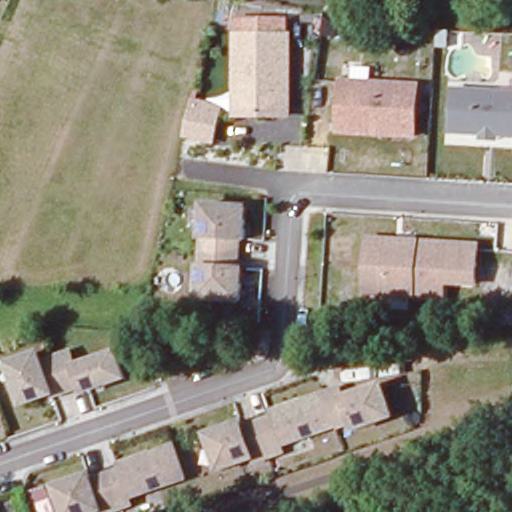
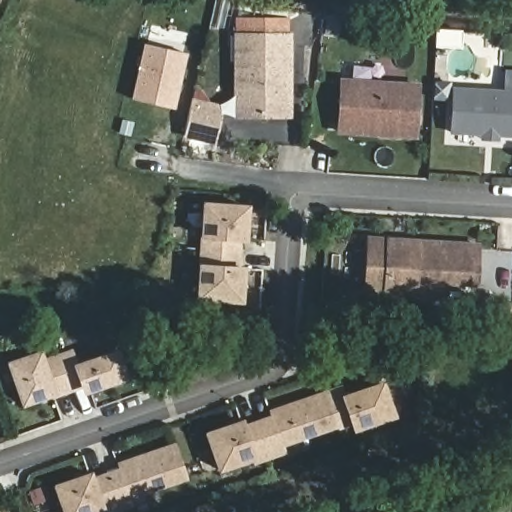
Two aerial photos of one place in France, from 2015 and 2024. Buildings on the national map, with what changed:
unchanged [(288,33),(291,33),(291,116),(232,119),(232,33),(235,33),(235,19),(288,17),(288,33)]
new [(139,44),(180,53),(168,109),(127,100),(139,44)]
unchanged [(336,123),(338,81),(415,85),(412,136),(375,133),(335,131),(336,123)]
unchanged [(512,135),(448,131),(450,89),(512,92),(512,135)]
unchanged [(186,134),(188,124),(193,105),(194,98),(224,104),(222,111),(215,141),(186,134)]
unchanged [(243,207),(242,239),(236,239),(234,268),(239,268),(237,301),(195,298),(201,204),(243,207)]
unchanged [(365,238),(474,245),(472,283),(441,281),(440,297),(362,293),(365,238)]
unchanged [(34,353),(37,362),(52,357),(66,352),(71,366),(112,352),(121,378),(86,389),(84,384),(49,396),(48,393),(19,403),(5,363),(34,353)]
unchanged [(238,421),(240,426),(268,417),(266,412),(323,392),(337,387),(340,397),(379,383),(390,416),(351,429),(349,423),(334,428),(334,426),(278,445),(281,452),(266,457),(252,462),(251,458),(216,470),(204,433),(238,421)]
unchanged [(91,474),(93,479),(120,469),(118,464),(175,445),(187,478),(131,497),(134,506),(119,511),(115,512),(104,512),(103,510),(97,512),(66,512),(56,486),(91,474)]

